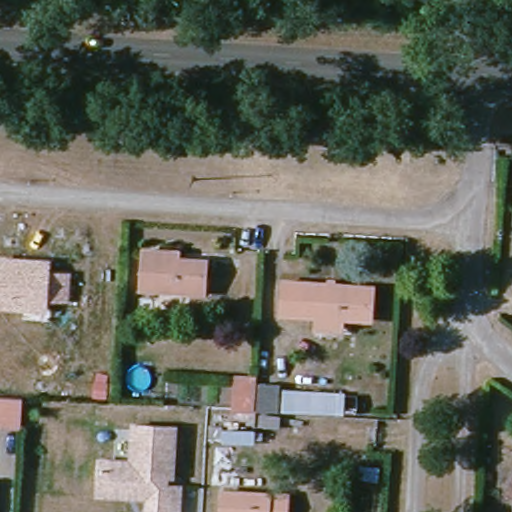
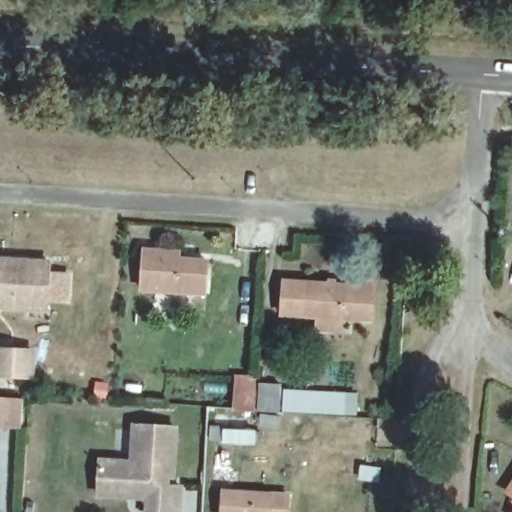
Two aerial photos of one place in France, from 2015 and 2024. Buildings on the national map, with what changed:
unchanged [(155,248),(154,255),(201,259),(199,293),(136,289),(138,247),(155,248)]
unchanged [(49,264),(47,311),(0,309),(0,262),(49,264)]
unchanged [(313,329),(315,312),(279,309),(282,277),(370,284),(368,316),(343,314),(341,331),(313,329)]
new [(38,346),(36,379),(0,377),(0,346),(38,346)]
unchanged [(241,406),(230,405),(232,373),(252,375),(250,406),(241,406)]
unchanged [(261,413),(262,388),(343,390),(343,416),(261,413)]
unchanged [(28,425),(0,424),(0,395),(30,397),(28,425)]
unchanged [(101,464),(133,466),(136,429),(177,431),(174,479),(168,479),(167,490),(182,491),(181,512),(148,512),(149,501),(127,499),(99,498),(101,464)]
unchanged [(512,475),(512,495),(503,489),(512,475)]
unchanged [(264,493),(286,495),(285,512),(214,512),(216,489),(264,493)]

